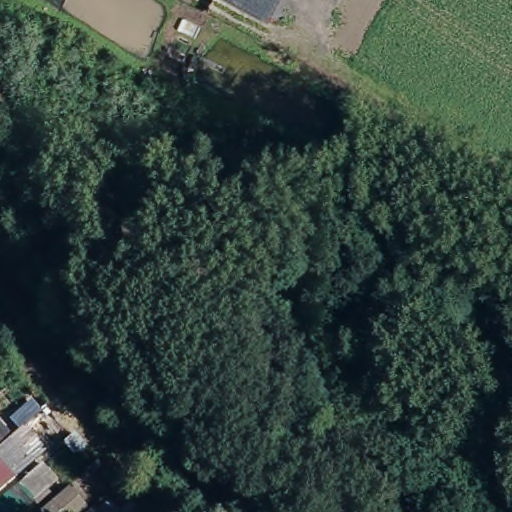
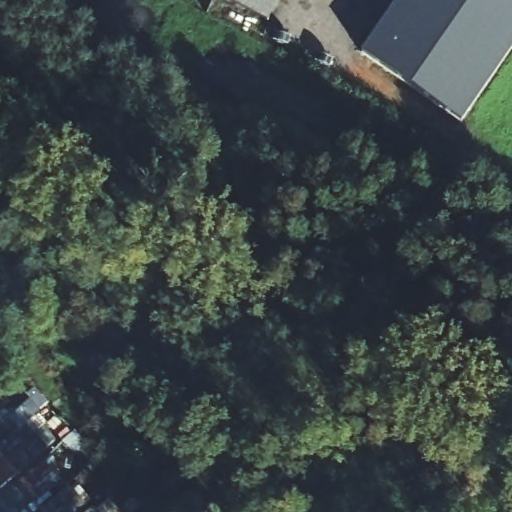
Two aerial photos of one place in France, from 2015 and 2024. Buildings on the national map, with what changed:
unchanged [(233,0),(279,0),(268,20),(233,0)]
new [(360,53),(397,0),(512,0),(512,49),(462,122),(360,53)]
unchanged [(0,420),(20,440),(0,458),(0,420)]
unchanged [(0,488),(0,469),(10,480),(0,488)]
unchanged [(35,500),(22,512),(0,512),(0,498),(18,481),(35,500)]

